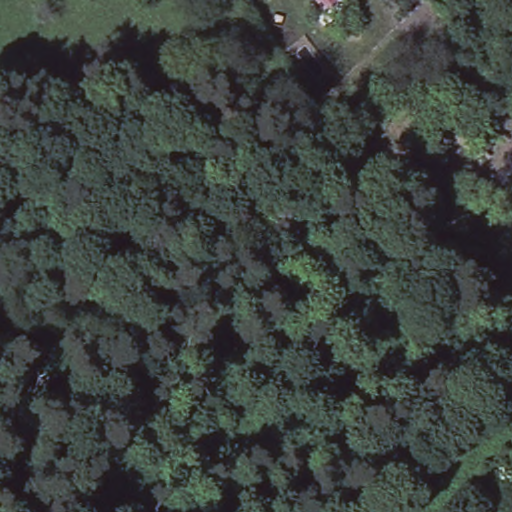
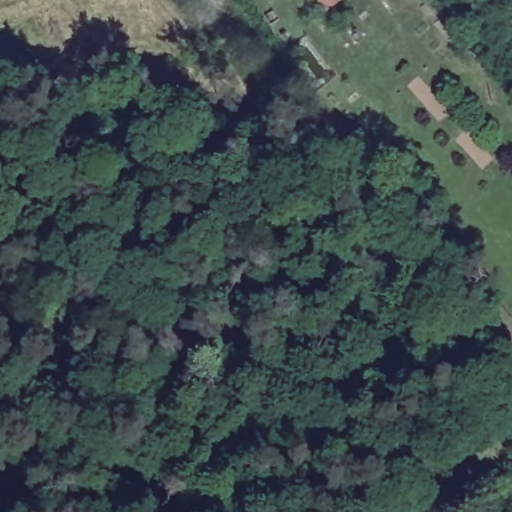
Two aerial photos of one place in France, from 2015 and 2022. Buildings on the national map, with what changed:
unchanged [(445,476),(482,435),(512,402),(512,428),(495,447),(457,488),(445,476)]
unchanged [(492,465),(499,472),(490,480),(487,485),(480,478),(492,465)]

